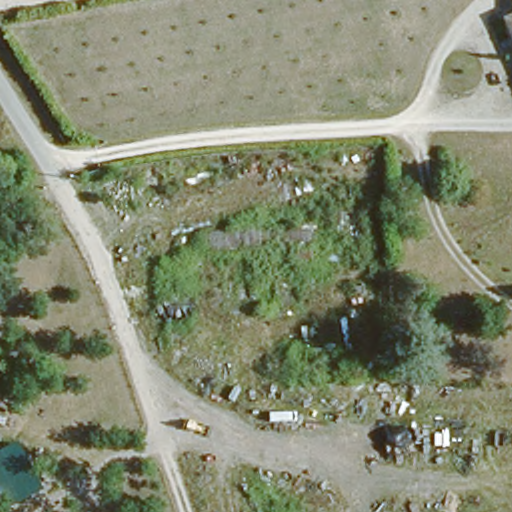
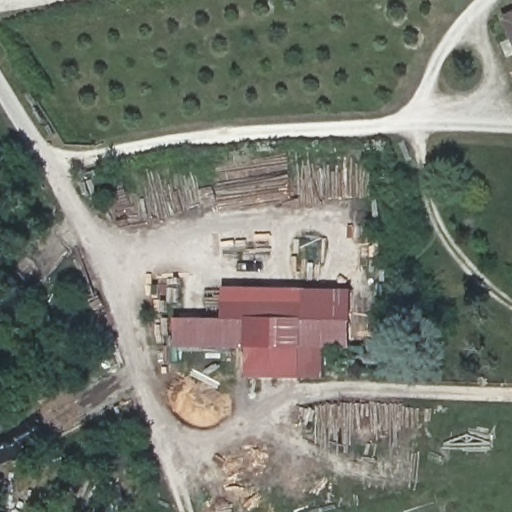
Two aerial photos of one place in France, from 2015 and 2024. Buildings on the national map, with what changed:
new [(223,292),(303,289),(303,319),(347,319),(346,349),(328,351),(324,378),(303,377),(246,376),(247,348),(174,346),(176,318),(220,318),(223,292)]

